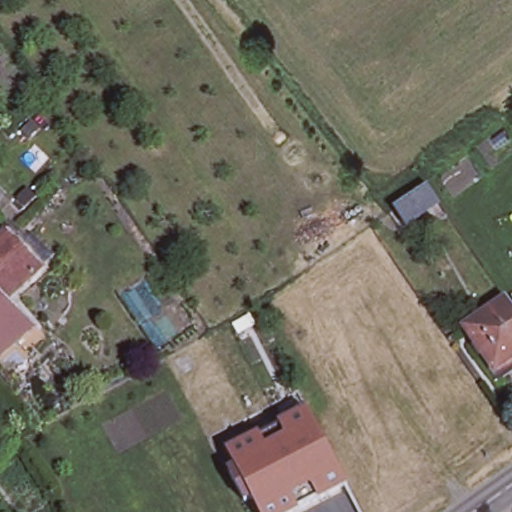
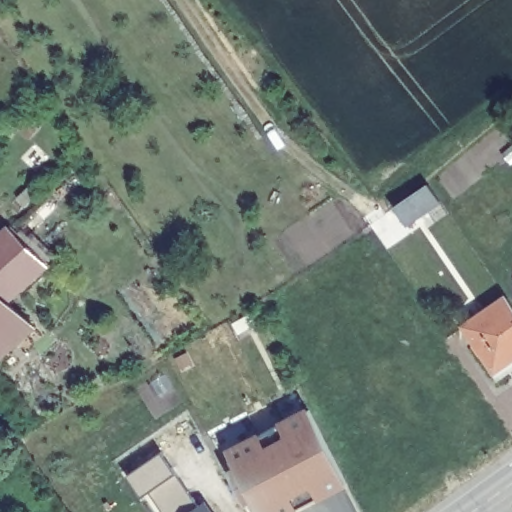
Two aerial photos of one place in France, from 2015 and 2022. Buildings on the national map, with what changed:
unchanged [(433,195),(440,205),(409,226),(396,207),(428,186),(433,195)]
unchanged [(38,267),(0,303),(27,328),(0,353),(0,234),(2,232),(38,267)]
unchanged [(491,376),(487,369),(456,324),(497,297),(500,295),(512,313),(512,362),(491,376)]
unchanged [(255,512),(223,453),(304,411),(341,484),(288,512),(255,512)]
new [(198,506),(206,501),(214,512),(164,512),(151,492),(142,497),(127,477),(162,453),(176,472),(198,506)]

